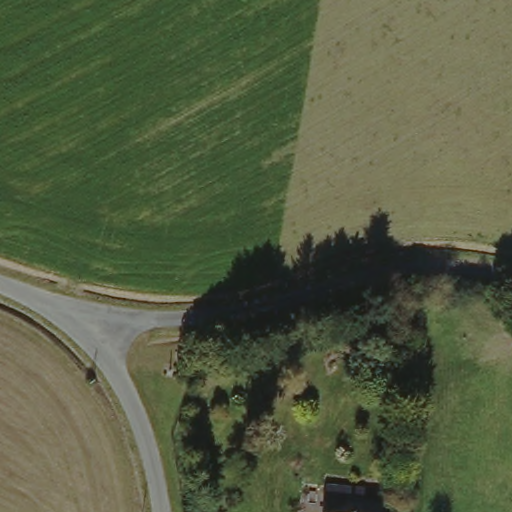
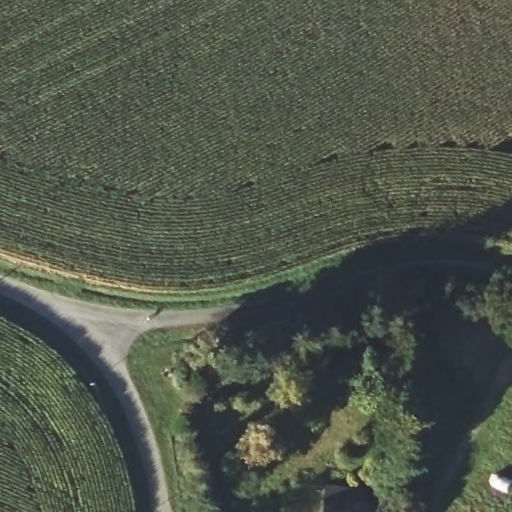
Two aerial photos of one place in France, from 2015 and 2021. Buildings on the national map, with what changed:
unchanged [(356,504),(355,512),(325,512),(326,491),(368,492),(368,504),(356,504)]
unchanged [(386,512),(355,512),(356,504),(368,504),(386,505),(386,512)]

